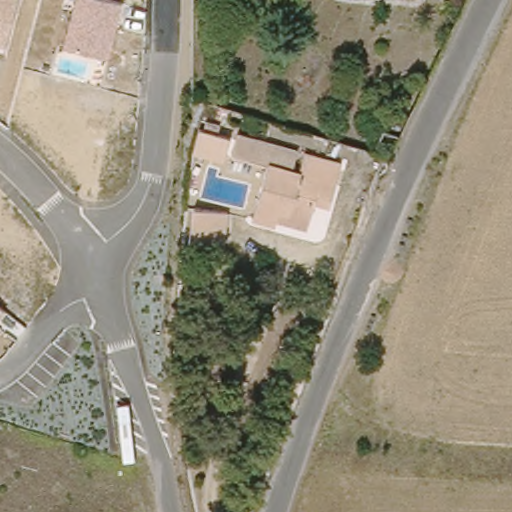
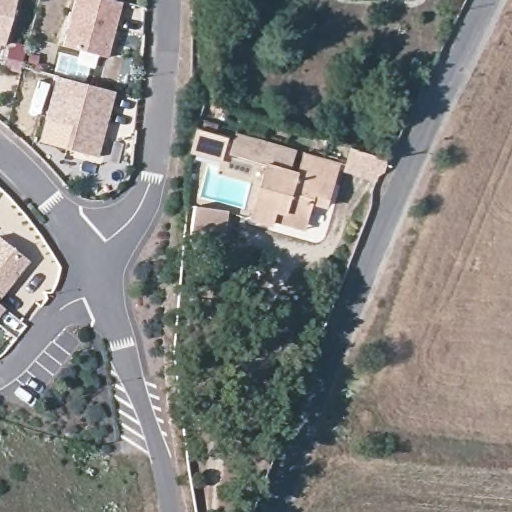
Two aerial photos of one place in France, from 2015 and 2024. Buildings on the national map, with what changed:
unchanged [(0,43),(0,0),(20,0),(9,46),(0,43)]
unchanged [(112,0),(122,3),(109,60),(62,48),(73,0),(112,0)]
new [(65,149),(71,127),(46,121),(56,78),(116,91),(99,160),(65,149)]
unchanged [(219,124),(214,149),(181,141),(187,116),(219,124)]
unchanged [(272,161),(252,156),(234,151),(240,128),(259,133),(302,145),(296,168),(272,161)]
new [(357,149),(390,159),(381,182),(350,173),(357,149)]
unchanged [(280,228),(254,220),(272,161),(296,168),(305,171),(311,151),(347,163),(337,205),(320,200),(314,218),(311,235),(280,228)]
unchanged [(216,231),(178,228),(181,205),(216,207),(216,231)]
new [(0,299),(0,237),(30,261),(0,299)]
unchanged [(0,314),(0,306),(4,310),(0,314)]

